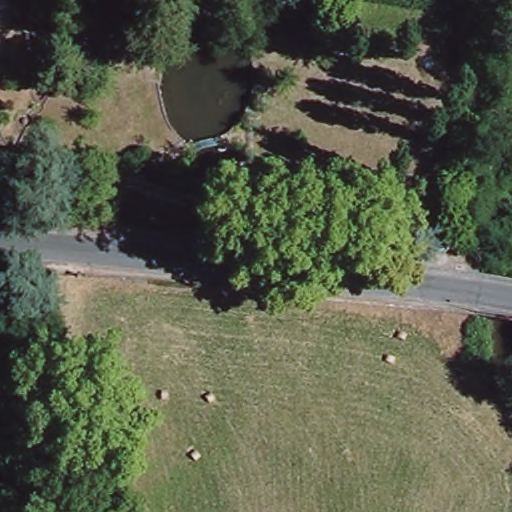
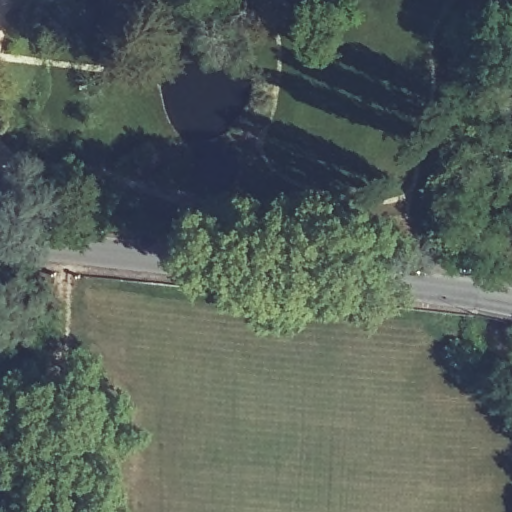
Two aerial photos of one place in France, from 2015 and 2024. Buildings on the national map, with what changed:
[]

